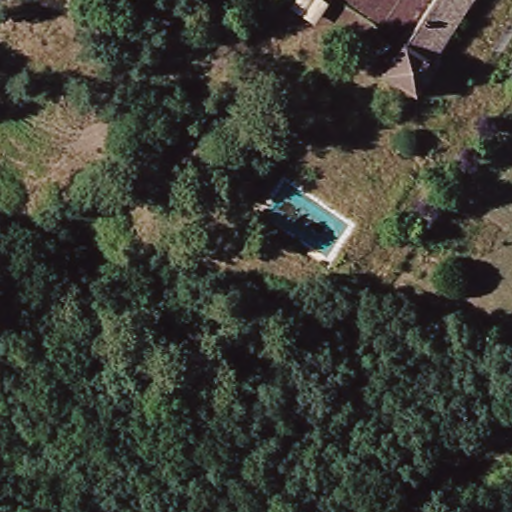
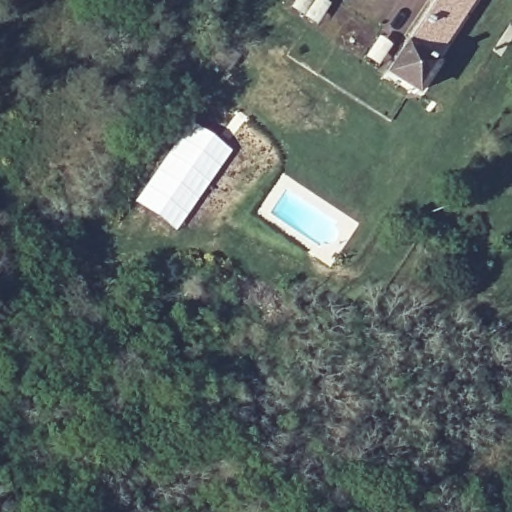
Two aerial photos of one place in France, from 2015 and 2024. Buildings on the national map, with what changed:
unchanged [(422,73),(400,103),(375,86),(433,0),(466,0),(418,71),(422,73)]
new [(174,232),(135,202),(193,121),(233,150),(174,232)]

